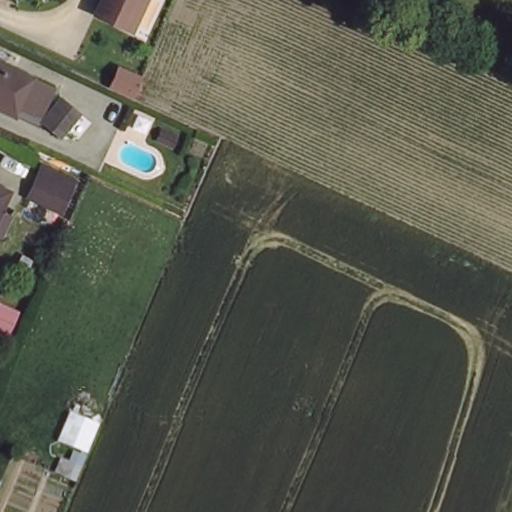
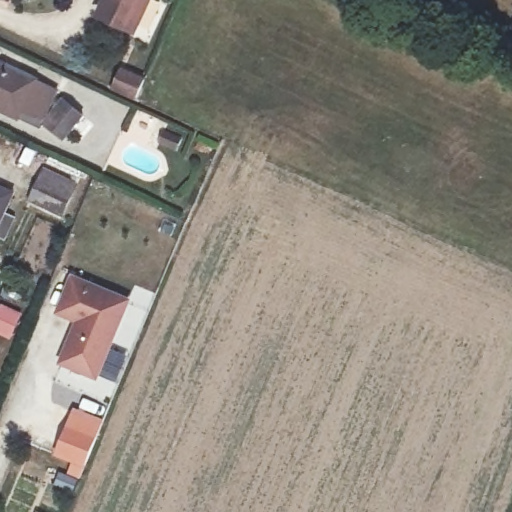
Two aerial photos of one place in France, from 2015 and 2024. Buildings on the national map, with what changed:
unchanged [(145,0),(132,26),(101,11),(106,0),(145,0)]
unchanged [(35,103),(22,98),(17,108),(0,100),(0,56),(45,76),(56,81),(46,108),(35,103)]
unchanged [(89,104),(70,128),(49,112),(70,87),(89,104)]
unchanged [(28,195),(38,174),(42,166),(77,182),(73,189),(62,212),(28,195)]
unchanged [(0,217),(0,184),(13,189),(0,217)]
new [(98,381),(57,364),(74,324),(54,314),(71,274),(132,299),(98,381)]

